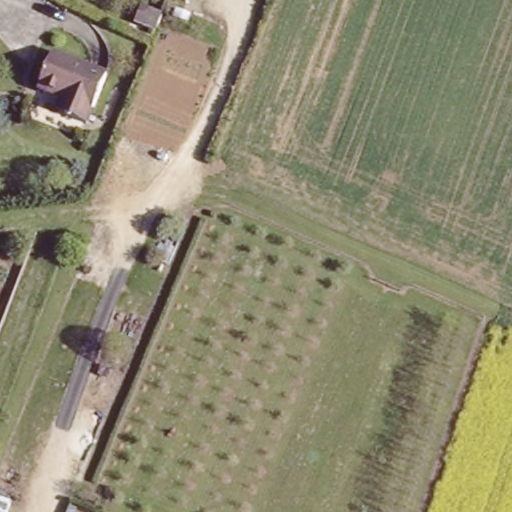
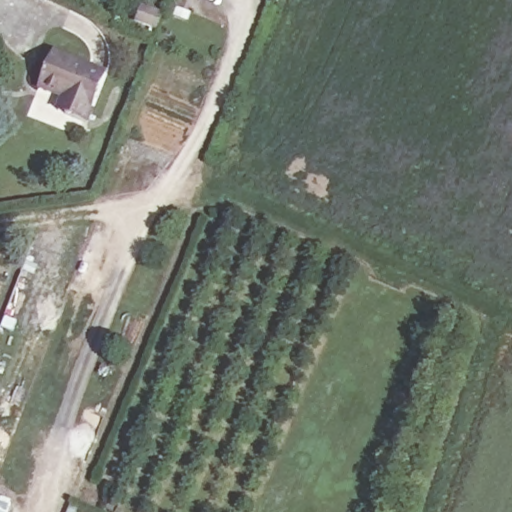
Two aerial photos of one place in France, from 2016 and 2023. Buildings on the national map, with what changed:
unchanged [(164,27),(148,20),(142,17),(149,1),(155,4),(170,10),(164,27)]
unchanged [(42,83),(57,47),(109,70),(112,71),(92,121),(89,120),(70,111),(60,107),(67,94),(42,83)]

